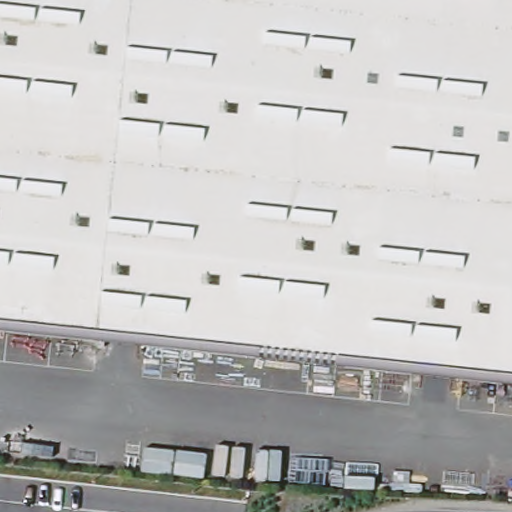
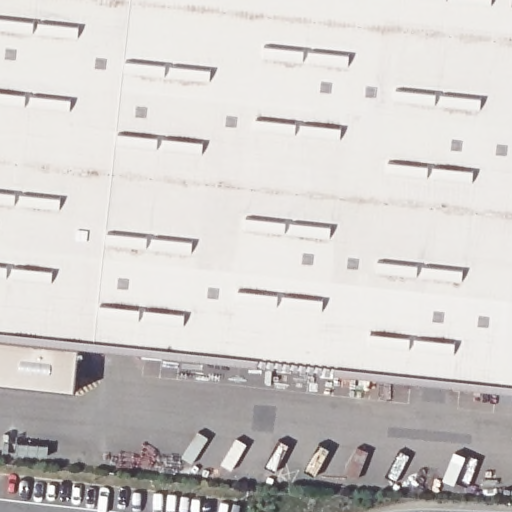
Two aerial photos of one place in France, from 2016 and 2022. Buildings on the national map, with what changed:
unchanged [(512,389),(0,331),(0,0),(512,0),(512,389)]
new [(82,343),(78,388),(0,380),(0,335),(82,343)]

